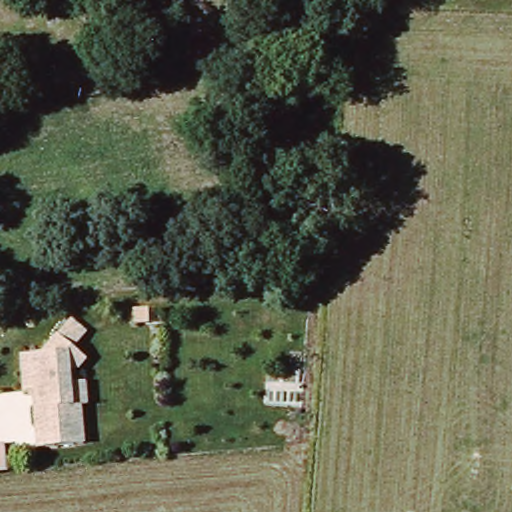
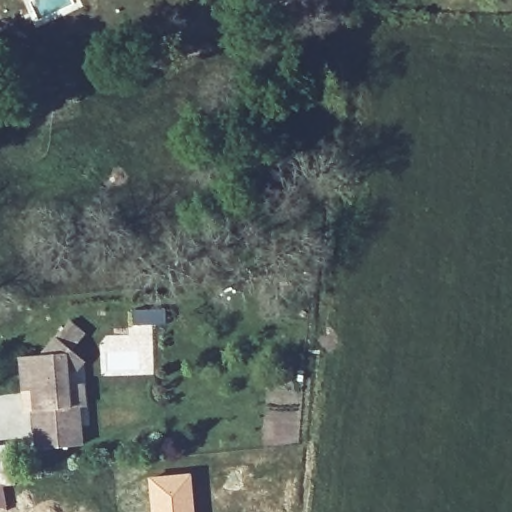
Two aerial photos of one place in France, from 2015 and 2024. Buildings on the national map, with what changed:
unchanged [(85,403),(79,403),(82,441),(37,447),(33,402),(38,398),(38,390),(22,390),(19,355),(42,353),(55,335),(56,335),(70,318),(100,341),(87,359),(84,357),(75,368),(69,367),(68,382),(84,381),(85,403)]
new [(191,471),(196,512),(150,512),(147,475),(191,471)]

